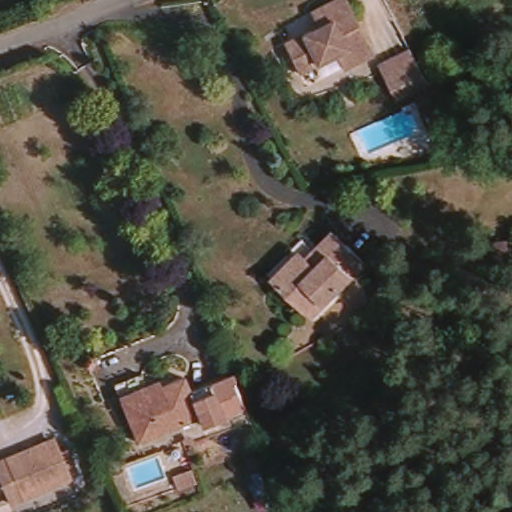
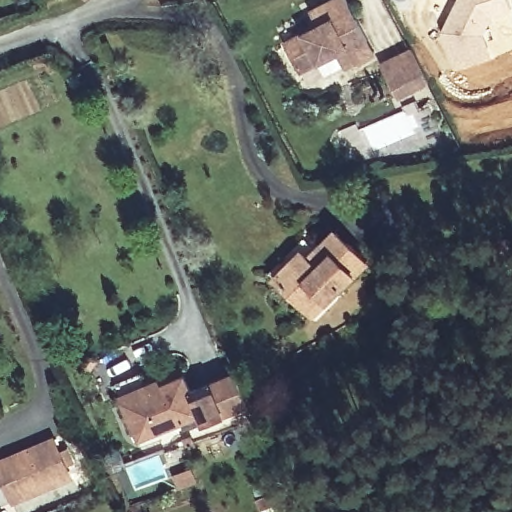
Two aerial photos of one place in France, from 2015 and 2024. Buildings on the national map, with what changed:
unchanged [(317,66),(300,75),(298,72),(285,43),(319,26),(314,14),(312,9),(330,0),(344,0),(347,4),(371,53),(372,55),(345,69),(340,60),(337,56),(317,66)]
new [(510,0),(512,6),(512,50),(491,59),(451,73),(437,34),(454,0),(510,0)]
unchanged [(376,63),(411,49),(427,86),(391,100),(389,95),(376,63)]
unchanged [(302,312),(273,280),(301,255),(306,261),(335,235),(362,266),(320,305),(307,318),(302,312)]
unchanged [(189,394),(233,376),(246,409),(202,427),(199,419),(139,444),(124,407),(120,397),(145,387),(147,392),(182,378),(189,394)]
unchanged [(0,493),(0,461),(50,439),(70,482),(7,509),(0,493)]

